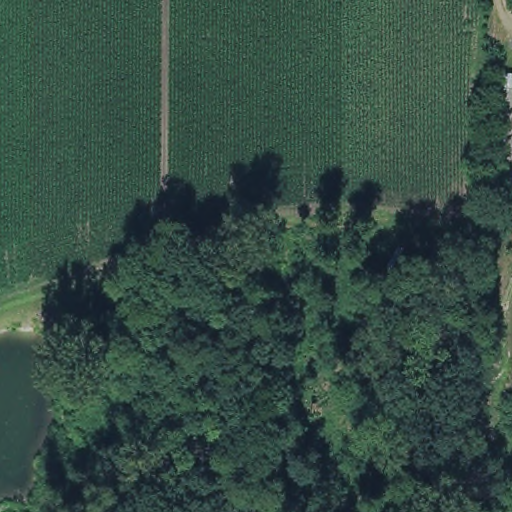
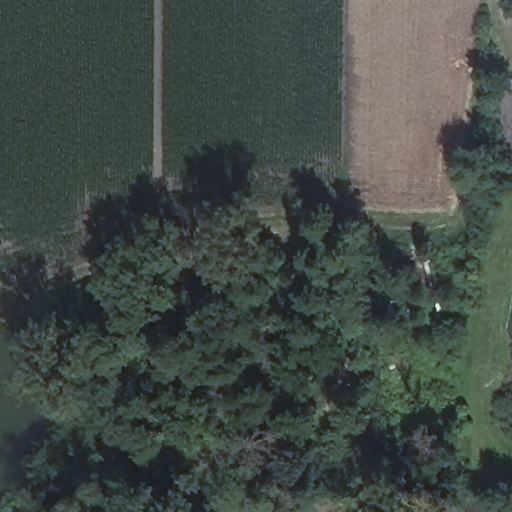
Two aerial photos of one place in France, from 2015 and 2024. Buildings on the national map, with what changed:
unchanged [(500,73),(512,74),(512,185),(500,185),(500,73)]

